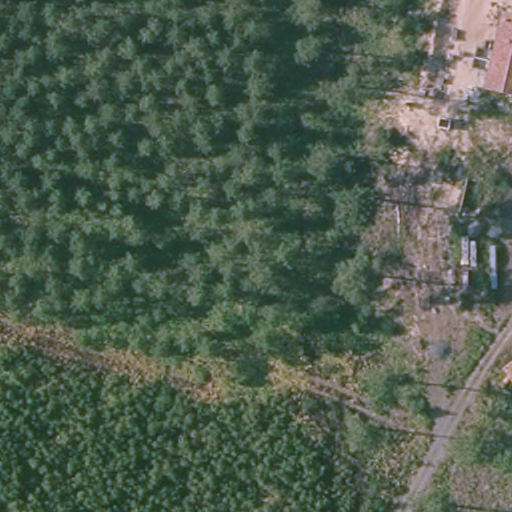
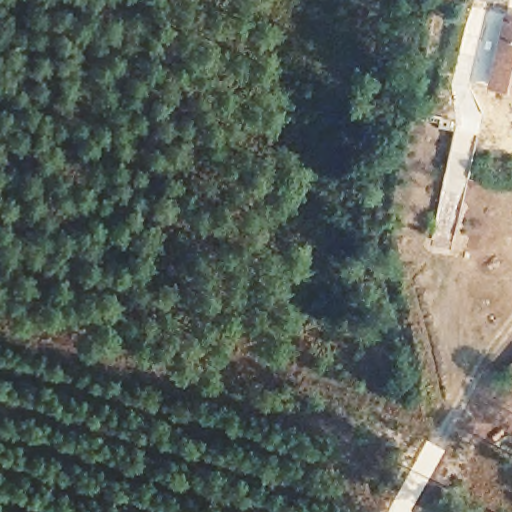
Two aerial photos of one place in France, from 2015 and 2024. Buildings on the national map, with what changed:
unchanged [(496,18),(512,22),(512,83),(510,93),(480,87),(496,18)]
unchanged [(512,359),(512,375),(504,364),(512,359)]

